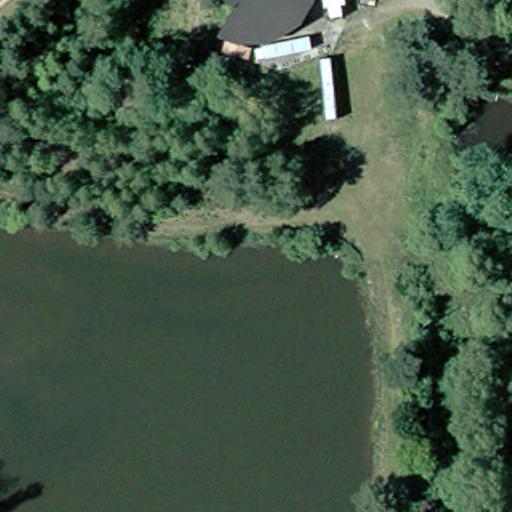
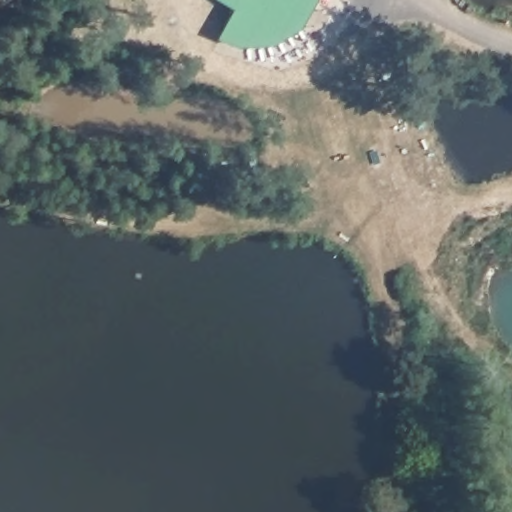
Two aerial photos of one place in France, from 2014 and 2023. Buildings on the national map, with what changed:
unchanged [(300,18),(295,26),(288,34),(280,39),(272,44),(262,48),(252,49),(242,49),(232,46),(220,39),(238,8),(226,0),(306,0),(303,9),(300,18)]

